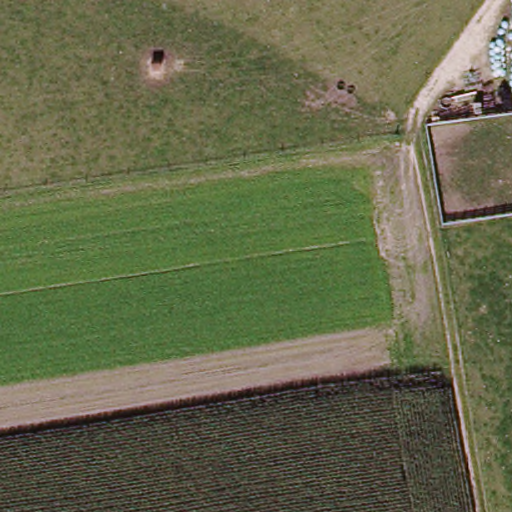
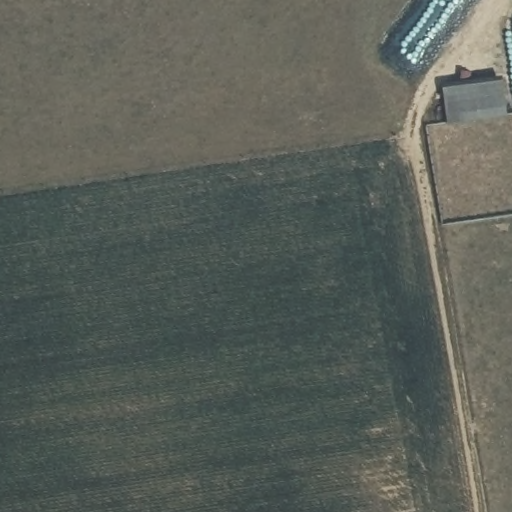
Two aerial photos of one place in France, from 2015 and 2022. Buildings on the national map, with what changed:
new [(503,82),(505,115),(447,120),(444,89),(503,82)]

